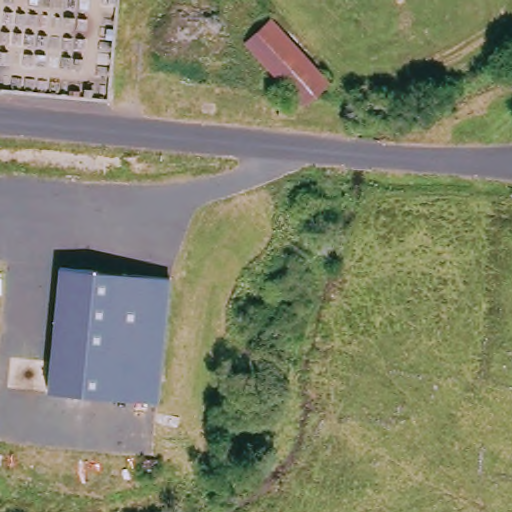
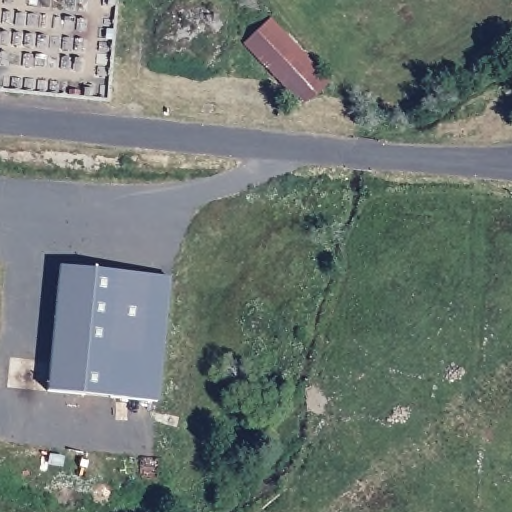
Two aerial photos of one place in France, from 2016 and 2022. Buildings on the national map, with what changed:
unchanged [(304,110),(245,46),(272,20),(335,83),(304,110)]
unchanged [(176,275),(164,402),(53,392),(66,265),(176,275)]

